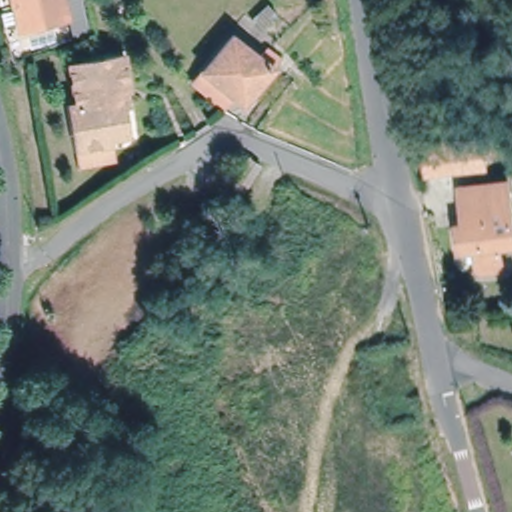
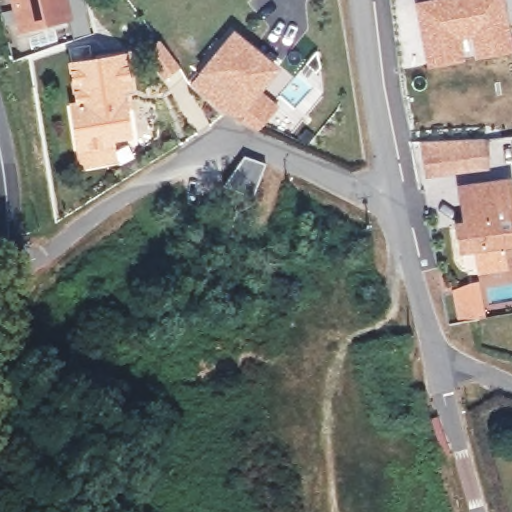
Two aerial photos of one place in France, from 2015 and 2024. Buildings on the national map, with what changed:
unchanged [(21,29),(14,0),(65,0),(69,18),(21,29)]
new [(500,0),(509,49),(431,64),(420,5),(444,0),(500,0)]
unchanged [(229,97),(222,110),(190,83),(229,35),(256,56),(263,48),(277,59),(271,68),(240,105),(229,97)]
unchanged [(87,55),(74,57),(72,49),(86,46),(87,55)]
unchanged [(130,135),(111,137),(115,160),(83,165),(73,105),(78,104),(72,65),(125,56),(131,89),(122,90),(130,135)]
new [(485,137),(490,167),(426,176),(421,140),(485,137)]
demolished [(444,147),(448,177),(431,180),(426,150),(444,147)]
unchanged [(245,193),(232,185),(249,158),(262,166),(245,193)]
unchanged [(509,182),(512,204),(512,242),(500,244),(503,267),(481,270),(477,246),(462,249),(459,225),(466,224),(461,189),(509,182)]

